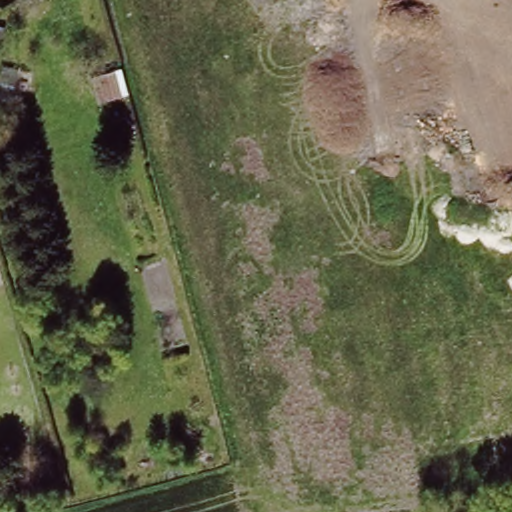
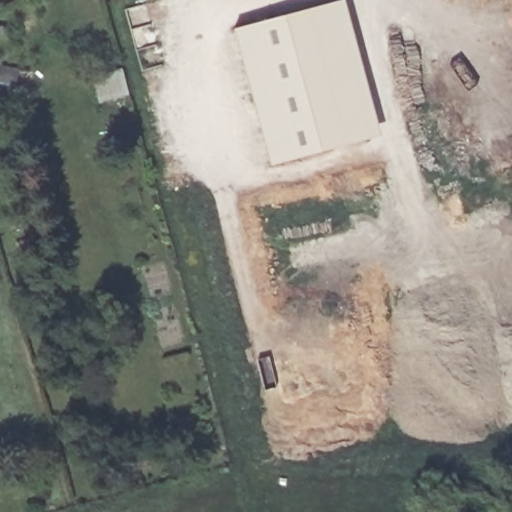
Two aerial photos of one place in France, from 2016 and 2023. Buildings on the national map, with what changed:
new [(232,28),(340,0),(344,0),(381,135),(269,165),(232,28)]
unchanged [(125,94),(99,101),(93,82),(120,74),(125,94)]

